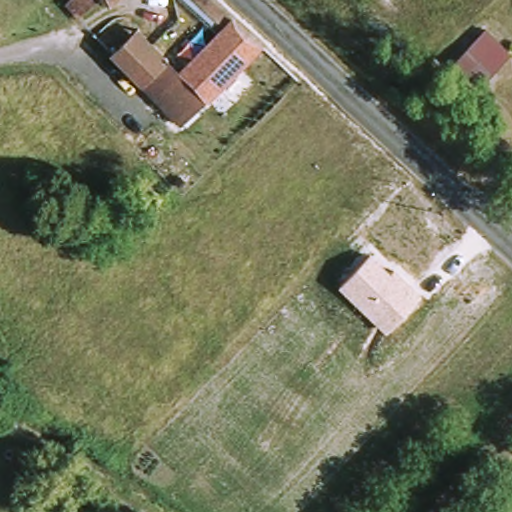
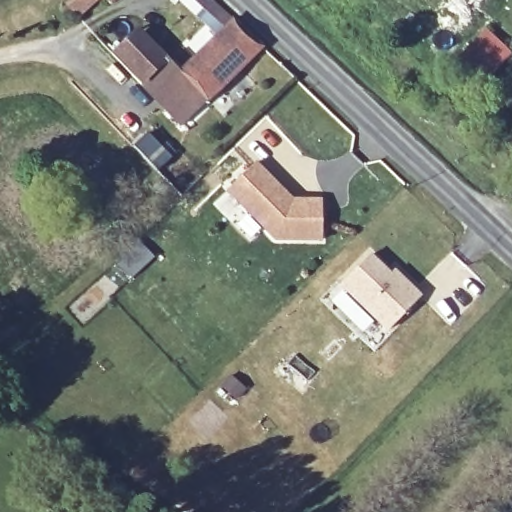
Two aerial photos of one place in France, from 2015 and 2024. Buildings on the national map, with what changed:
unchanged [(72,16),(64,7),(72,0),(91,0),(72,16)]
unchanged [(112,4),(108,0),(117,0),(112,4)]
unchanged [(183,73),(227,25),(200,0),(219,0),(265,43),(209,100),(183,73)]
new [(466,4),(462,0),(471,0),(466,4)]
unchanged [(117,57),(140,33),(183,73),(209,100),(185,123),(181,127),(173,120),(178,116),(117,57)]
unchanged [(503,59),(471,90),(449,68),(482,38),(503,59)]
new [(282,191),(290,200),(320,200),(320,239),(274,239),(226,190),(253,163),(282,191)]
new [(131,251),(142,241),(151,251),(140,261),(129,271),(124,276),(115,266),(120,261),(131,251)]
unchanged [(371,253),(391,274),(395,269),(422,295),(387,332),(340,285),(371,253)]

